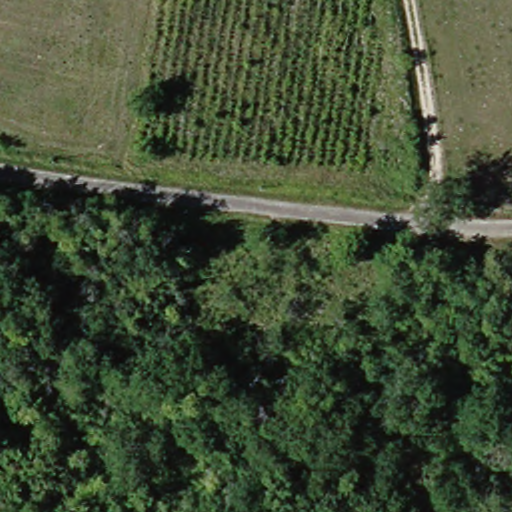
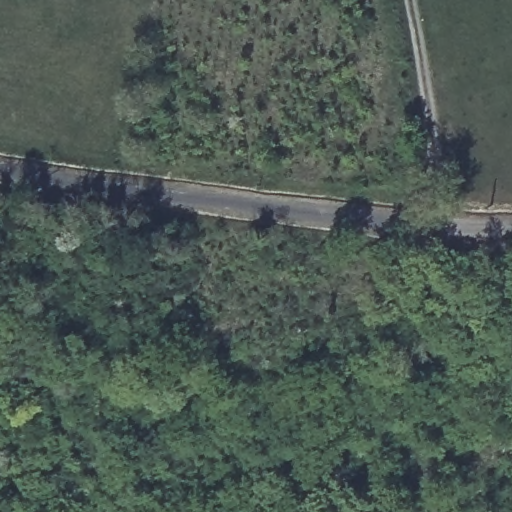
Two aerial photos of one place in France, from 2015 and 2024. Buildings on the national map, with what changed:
[]

